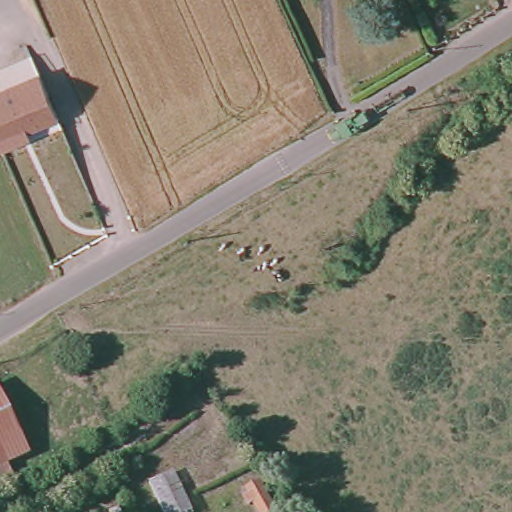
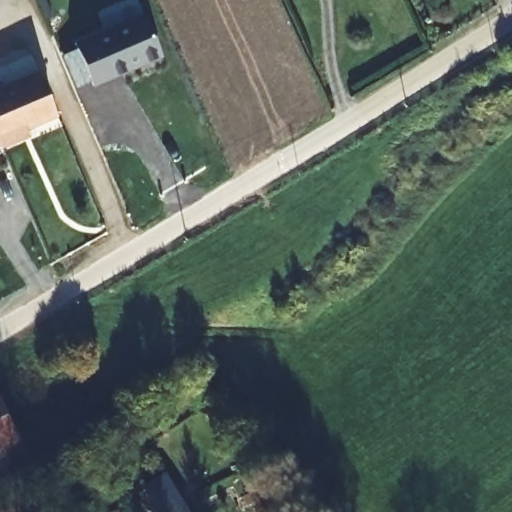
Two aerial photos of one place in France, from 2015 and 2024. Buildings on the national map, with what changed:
new [(142,16),(159,60),(90,92),(72,48),(142,16)]
unchanged [(0,147),(0,90),(33,75),(51,117),(20,130),(23,137),(16,140),(0,147)]
unchanged [(0,493),(0,390),(31,457),(10,468),(18,486),(0,493)]

